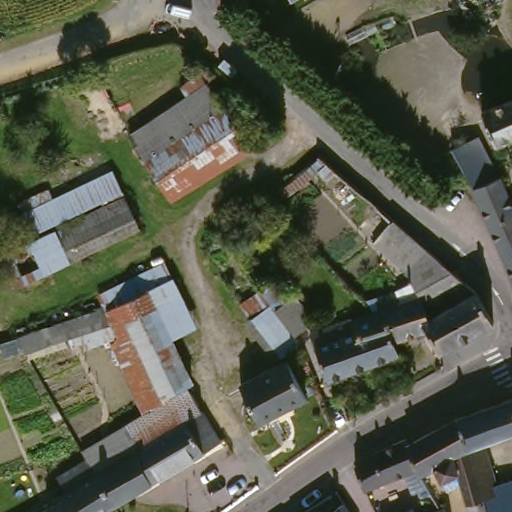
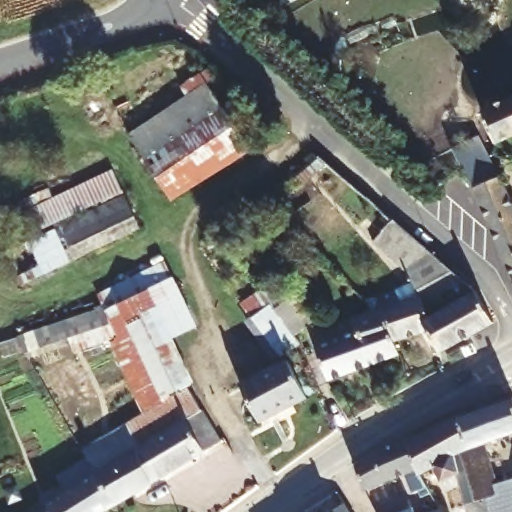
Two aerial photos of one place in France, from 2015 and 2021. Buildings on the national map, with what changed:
unchanged [(153,156),(135,130),(212,78),(230,104),(153,156)]
unchanged [(512,100),(512,140),(502,144),(487,110),(512,100)]
unchanged [(178,194),(153,156),(230,104),(256,142),(178,194)]
unchanged [(512,187),(512,261),(478,183),(467,165),(457,142),(485,129),(504,172),(506,171),(512,187)]
unchanged [(128,186),(10,243),(0,224),(0,223),(118,165),(128,186)]
unchanged [(146,222),(28,280),(10,243),(128,186),(146,222)]
unchanged [(386,308),(382,296),(402,291),(418,282),(412,271),(379,242),(388,232),(372,218),(383,206),(482,291),(499,322),(445,353),(433,331),(399,345),(379,310),(386,308)]
unchanged [(176,338),(198,382),(194,387),(151,413),(117,339),(103,308),(109,306),(104,294),(170,262),(201,326),(176,338)]
unchanged [(299,331),(304,339),(284,354),(261,328),(264,324),(247,299),(264,286),(277,303),(299,289),(317,320),(299,331)]
unchanged [(81,350),(76,335),(31,352),(23,336),(103,308),(117,339),(81,350)]
unchanged [(333,380),(316,334),(379,310),(399,345),(404,354),(333,380)]
unchanged [(265,416),(246,379),(293,355),(312,392),(265,416)]
unchanged [(151,413),(194,387),(226,441),(121,504),(93,458),(88,451),(151,413)]
unchanged [(512,400),(512,435),(489,442),(506,494),(490,499),(462,418),(512,400)]
unchanged [(453,491),(439,466),(425,474),(423,475),(422,469),(415,443),(462,418),(490,499),(494,512),(475,512),(467,484),(453,491)]
unchanged [(370,489),(360,467),(380,453),(412,437),(415,443),(422,469),(370,489)]
unchanged [(48,512),(49,511),(46,505),(72,491),(64,476),(93,458),(121,504),(108,512),(48,512)]
unchanged [(511,463),(512,463),(512,467),(511,463)]
unchanged [(451,504),(453,512),(398,512),(408,507),(402,494),(431,480),(447,505),(451,504)]
unchanged [(358,512),(329,512),(349,498),(358,512)]

